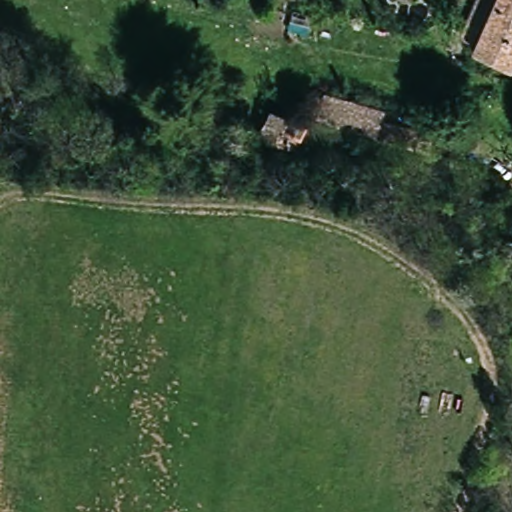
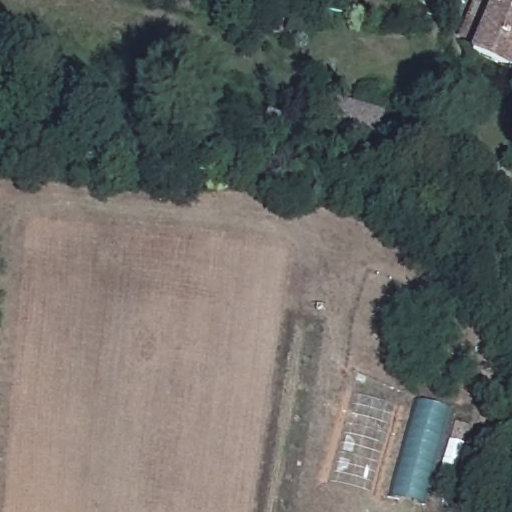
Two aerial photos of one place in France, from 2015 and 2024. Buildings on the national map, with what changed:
unchanged [(473,41),(477,34),(462,26),(474,0),(483,0),(491,4),(493,0),(512,0),(512,58),(473,41)]
unchanged [(277,143),(257,136),(270,106),(288,114),(277,143)]
unchanged [(407,144),(334,126),(340,106),(410,126),(407,144)]
new [(417,402),(448,411),(425,504),(389,496),(417,402)]

